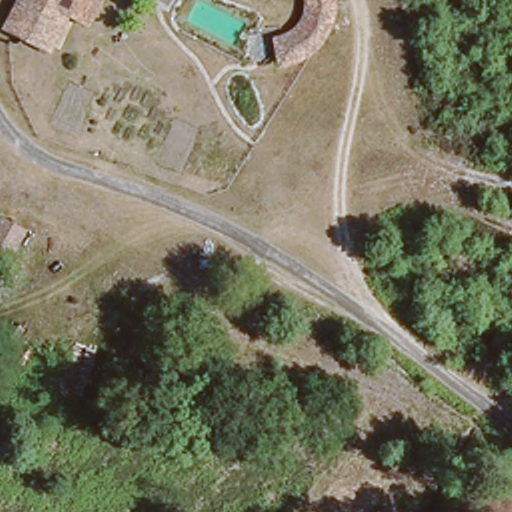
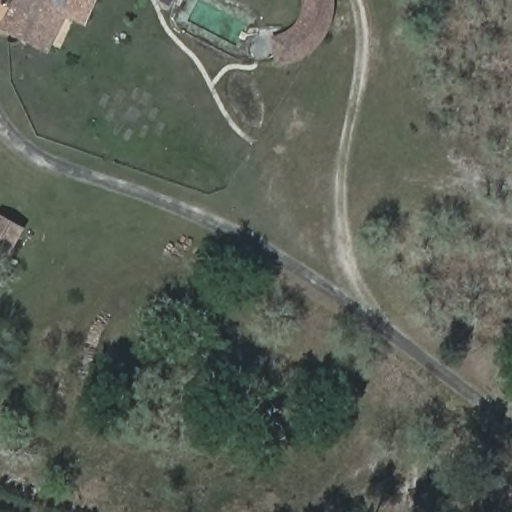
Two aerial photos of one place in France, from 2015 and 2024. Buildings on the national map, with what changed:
unchanged [(89,24),(70,14),(49,51),(1,25),(14,0),(102,0),(89,24)]
unchanged [(335,7),(332,20),(328,32),(323,40),(316,49),(307,54),(291,63),(276,67),(270,38),(280,37),(288,31),(296,20),(300,15),(304,6),(304,0),(335,0),(335,7)]
unchanged [(28,227),(9,264),(0,259),(0,212),(28,227)]

